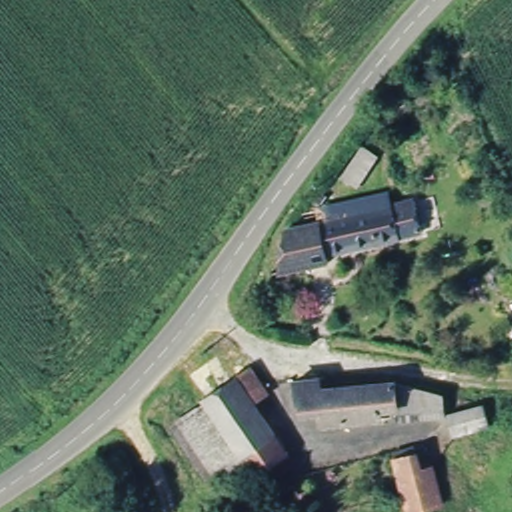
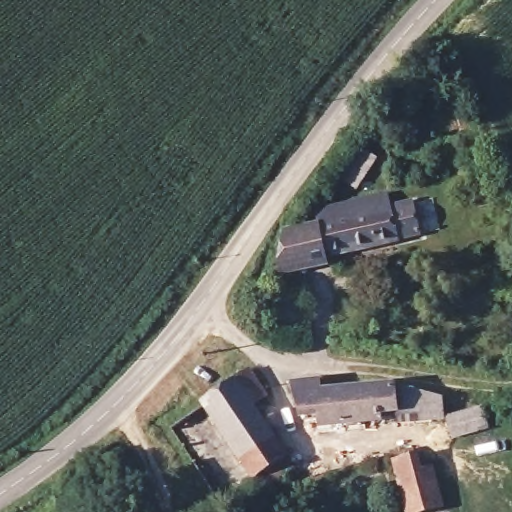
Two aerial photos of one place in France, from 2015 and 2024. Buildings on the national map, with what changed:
unchanged [(389,202),(396,235),(329,253),(329,261),(281,279),(278,234),(389,202)]
unchanged [(435,390),(440,410),(396,422),(392,413),(315,423),(312,407),(294,408),(291,375),(314,370),(318,384),(398,383),(435,390)]
unchanged [(252,494),(245,482),(208,506),(174,434),(218,409),(213,404),(260,371),(278,400),(261,413),(286,461),(293,473),(252,494)]
unchanged [(489,420),(453,433),(447,409),(482,401),(489,420)]
unchanged [(432,473),(442,511),(437,512),(406,512),(392,456),(415,449),(421,475),(432,473)]

